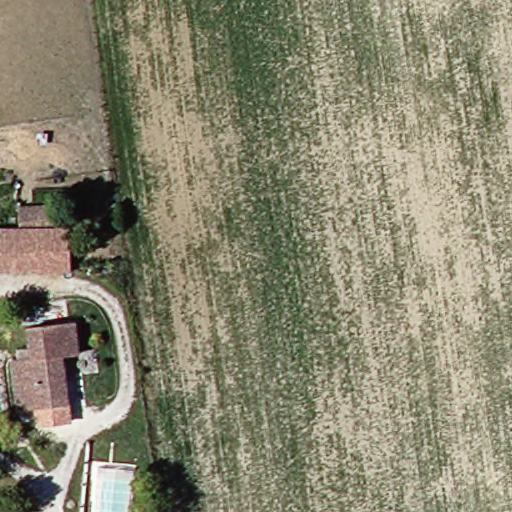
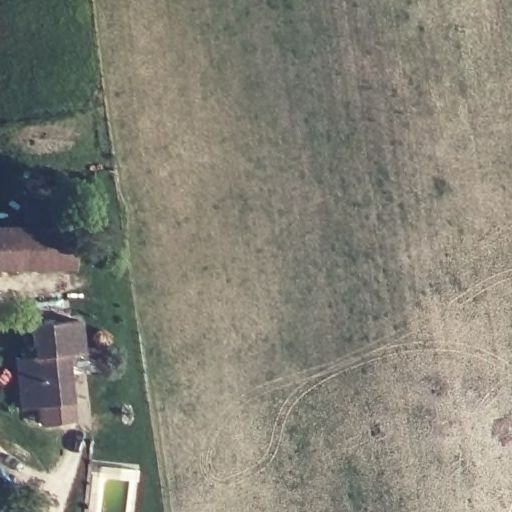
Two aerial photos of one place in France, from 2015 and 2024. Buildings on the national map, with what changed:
unchanged [(73,264),(0,270),(0,231),(20,229),(19,205),(55,201),(58,226),(75,225),(73,264)]
unchanged [(70,349),(73,401),(22,405),(20,355),(25,355),(25,345),(41,345),(41,325),(41,305),(89,301),(89,321),(90,348),(70,349)]

